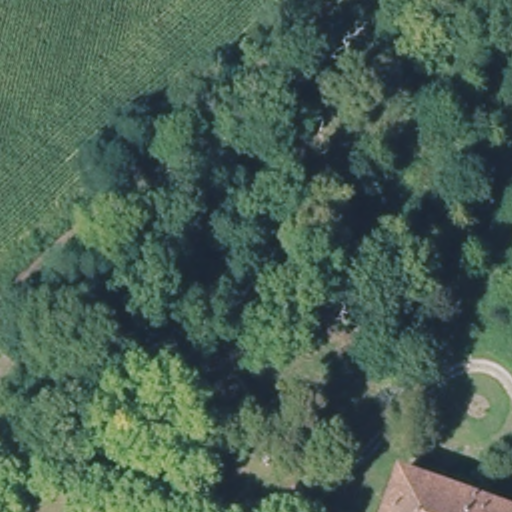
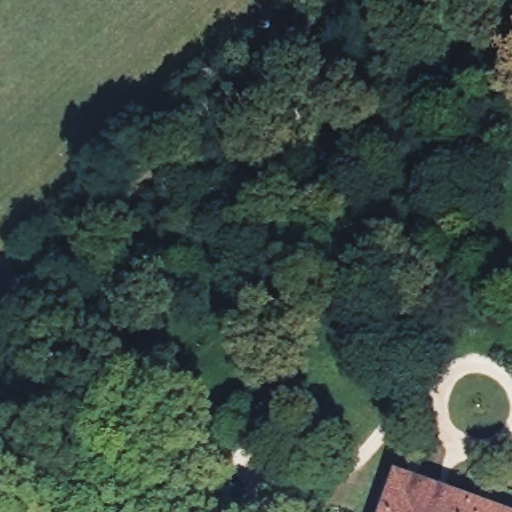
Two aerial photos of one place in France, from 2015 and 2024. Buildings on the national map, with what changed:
unchanged [(396,474),(502,512),(381,512),(396,474)]

